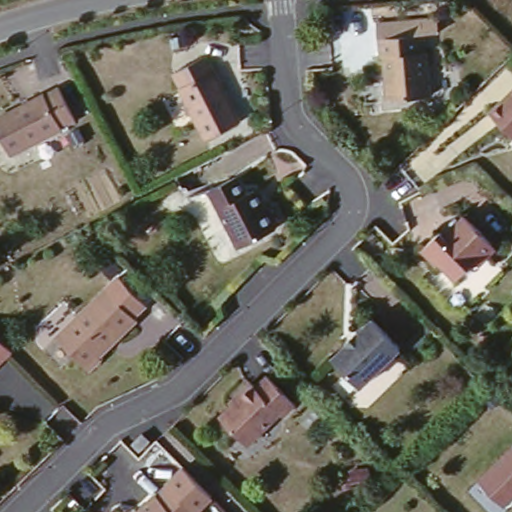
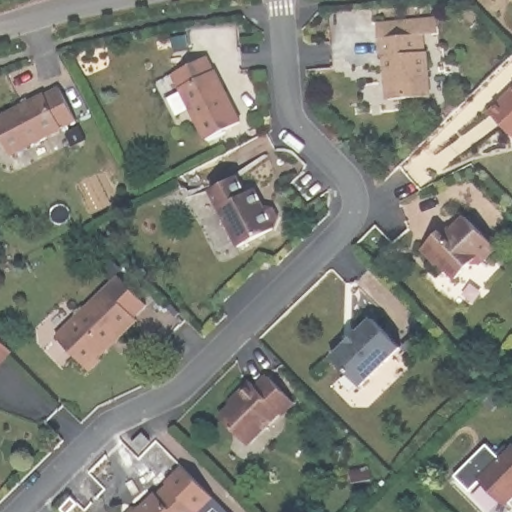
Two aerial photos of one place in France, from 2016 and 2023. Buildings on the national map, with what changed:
unchanged [(421,19),(420,29),(429,29),(430,94),(389,95),(386,39),(381,39),(381,19),(421,19)]
unchanged [(210,47),(240,114),(204,128),(173,62),(210,47)]
unchanged [(484,105),(512,79),(512,133),(510,135),(484,105)]
unchanged [(56,82),(74,118),(6,151),(0,140),(0,110),(56,82)]
unchanged [(240,174),(250,192),(257,189),(264,202),(274,208),(280,217),(276,228),(239,245),(213,186),(240,174)]
unchanged [(438,232),(445,240),(451,233),(447,228),(462,216),(495,248),(481,263),(473,264),(461,279),(444,263),(439,265),(423,250),(438,232)]
unchanged [(117,276),(149,305),(138,319),(99,356),(102,361),(90,370),(58,334),(117,276)]
unchanged [(373,318),(400,351),(360,390),(332,356),(373,318)]
unchanged [(10,351),(0,360),(0,341),(10,351)]
unchanged [(253,379),(250,376),(265,364),(295,399),(282,410),(279,407),(246,436),(223,409),(253,379)]
unchanged [(512,437),(512,485),(500,498),(478,472),(511,435),(512,437)]
unchanged [(135,436),(141,442),(133,451),(127,444),(135,436)]
unchanged [(136,503),(152,488),(156,492),(170,477),(198,505),(191,512),(132,512),(138,505),(136,503)]

